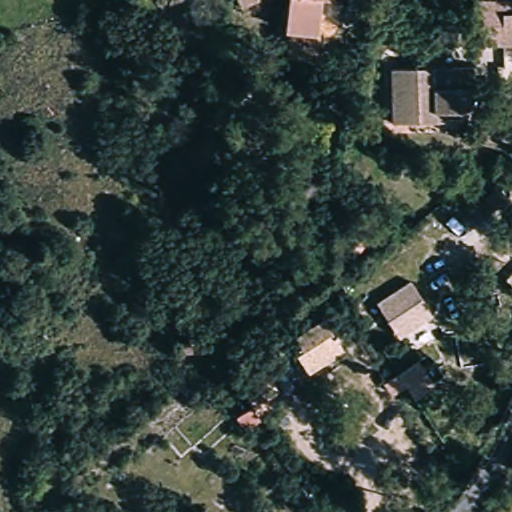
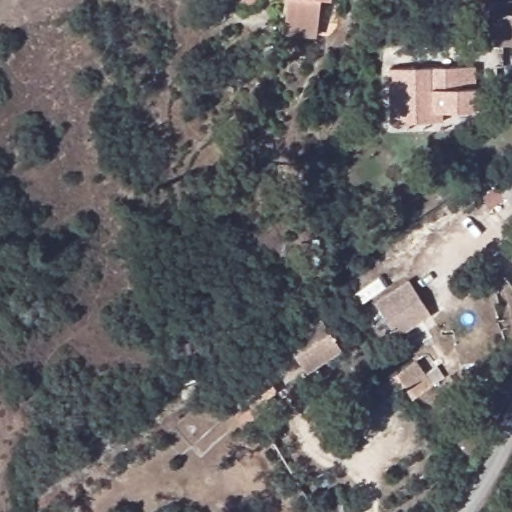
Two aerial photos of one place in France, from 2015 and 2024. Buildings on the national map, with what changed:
unchanged [(252,0),(239,4),(237,0),(252,0)]
unchanged [(287,29),(286,0),(321,0),(314,33),(287,29)]
unchanged [(498,0),(500,6),(498,6),(504,43),(479,48),(471,4),(495,0),(498,0)]
unchanged [(512,4),(512,42),(504,43),(498,6),(500,6),(512,4)]
unchanged [(472,57),(474,79),(481,78),(483,102),(466,104),(466,101),(436,105),(438,121),(393,126),(389,88),(387,66),(393,66),(401,65),(472,57)]
unchanged [(497,206),(491,198),(508,184),(512,189),(512,199),(500,209),(497,206)]
unchanged [(431,312),(397,335),(375,300),(409,278),(431,312)]
unchanged [(343,348),(336,352),(341,362),(330,371),(323,360),(308,371),(287,338),(321,315),(343,348)]
unchanged [(435,387),(408,405),(389,378),(417,359),(435,387)]

